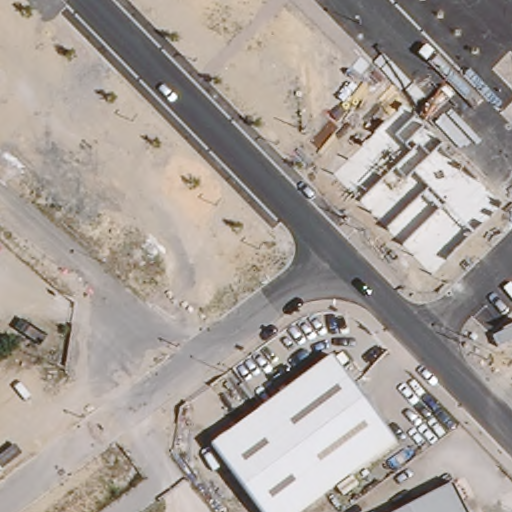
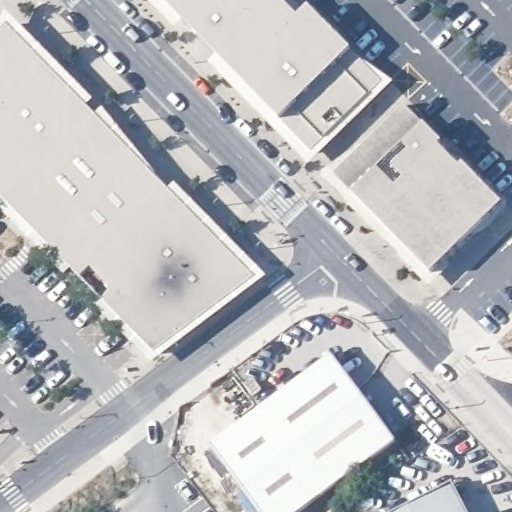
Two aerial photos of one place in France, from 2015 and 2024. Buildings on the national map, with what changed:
new [(310,10),(350,48),(364,61),(395,82),(310,164),(211,64),(218,58),(184,23),(177,30),(148,0),(281,0),(300,19),(310,10)]
demolished [(152,63),(174,9),(243,3),(250,124),(157,132),(152,63)]
new [(154,365),(98,309),(115,291),(91,269),(82,278),(74,270),(67,277),(0,209),(0,29),(7,13),(94,101),(88,107),(97,116),(104,110),(170,192),(176,186),(267,278),(154,365)]
unchanged [(442,143),(448,138),(512,203),(512,207),(480,238),(474,234),(444,264),(449,269),(430,287),(321,175),(363,145),(405,105),(442,143)]
unchanged [(264,409),(332,356),(398,444),(330,498),(264,409)]
unchanged [(311,512),(260,512),(213,449),(264,409),(330,498),(311,512)]
demolished [(33,468),(11,486),(33,512),(0,512),(0,454),(14,443),(33,468)]
unchanged [(408,503),(401,489),(445,467),(452,481),(469,512),(390,512),(408,503)]

